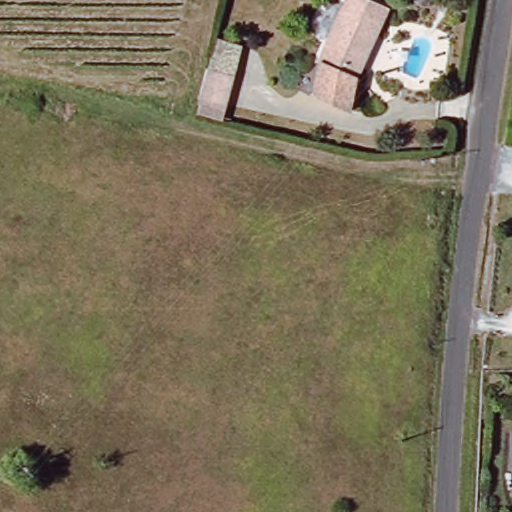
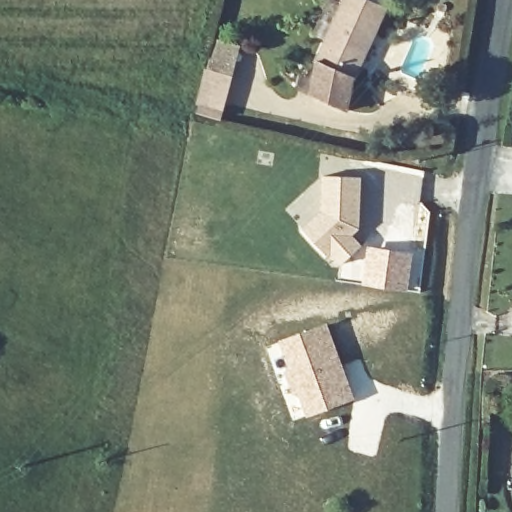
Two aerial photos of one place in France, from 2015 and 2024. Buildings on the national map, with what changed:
unchanged [(355,63),(353,62),(346,97),(310,80),(318,46),(317,45),(338,0),(384,0),(355,63)]
unchanged [(216,39),(245,45),(225,124),(197,116),(216,39)]
new [(322,212),(322,177),(360,178),(358,220),(355,220),(354,232),(351,236),(361,247),(341,265),(331,254),(327,257),(302,231),(322,212)]
new [(353,277),(360,277),(366,245),(417,252),(411,292),(352,282),(353,277)]
new [(327,322),(357,399),(302,419),(299,411),(298,412),(295,403),(288,406),(267,346),(327,322)]

